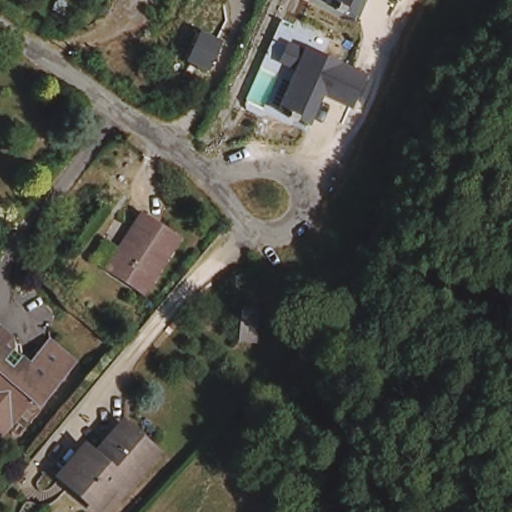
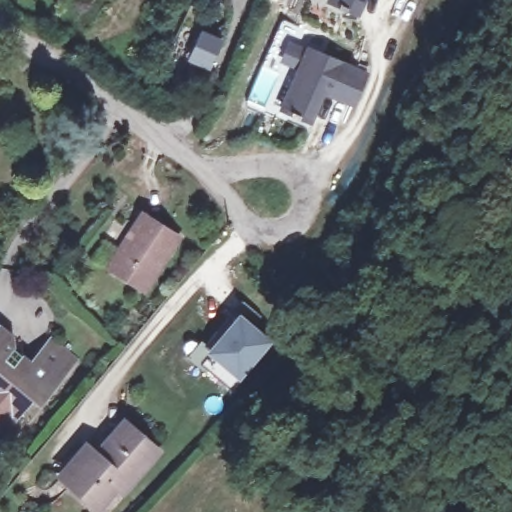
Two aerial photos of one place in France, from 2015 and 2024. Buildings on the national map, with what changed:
unchanged [(356,12),(327,0),(362,0),(356,12)]
unchanged [(209,34),(228,42),(217,68),(198,60),(209,34)]
unchanged [(275,59),(288,34),(368,69),(355,103),(326,93),(315,120),(276,108),(291,66),(275,59)]
unchanged [(151,294),(113,271),(146,216),(185,239),(151,294)]
new [(238,311),(272,339),(237,382),(204,352),(238,311)]
unchanged [(14,337),(16,350),(32,365),(53,340),(78,361),(41,407),(35,401),(3,440),(0,438),(0,331),(3,327),(14,337)]
unchanged [(111,487),(95,506),(65,477),(57,470),(81,443),(89,450),(94,455),(122,424),(153,452),(122,486),(117,492),(111,487)]

